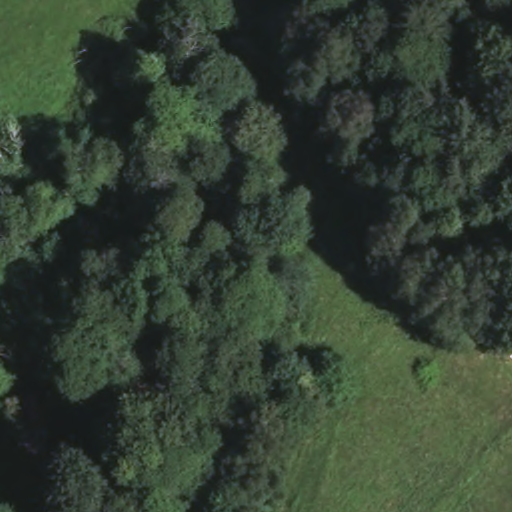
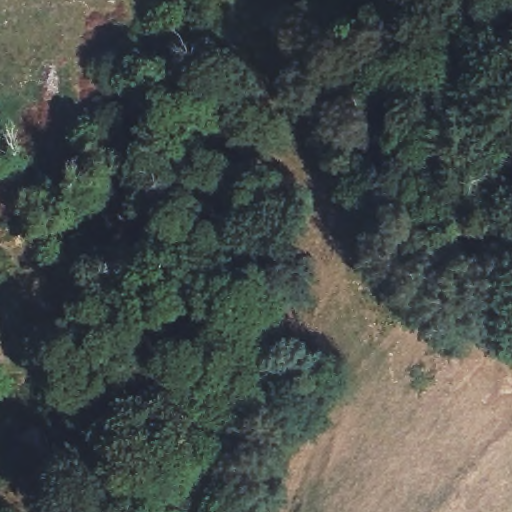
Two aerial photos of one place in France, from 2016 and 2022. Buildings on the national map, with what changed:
unchanged [(46,431),(53,457),(25,463),(8,407),(37,400),(46,431)]

